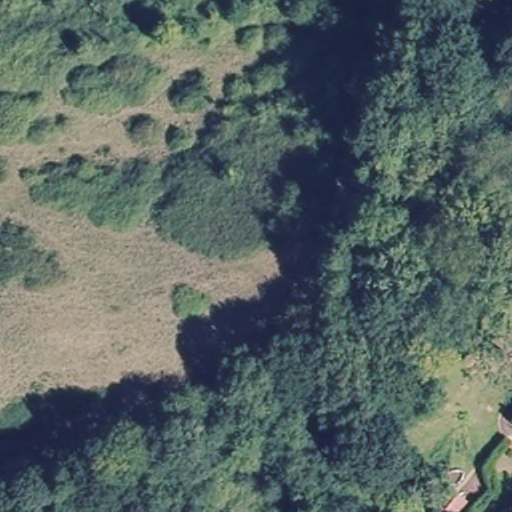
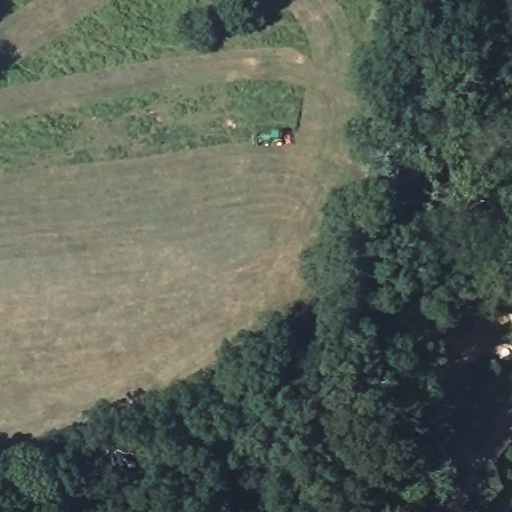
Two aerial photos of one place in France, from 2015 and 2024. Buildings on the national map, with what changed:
unchanged [(424,475),(441,488),(429,505),(412,492),(424,475)]

